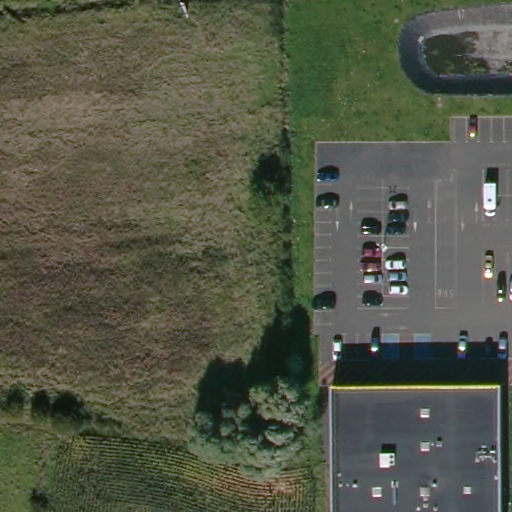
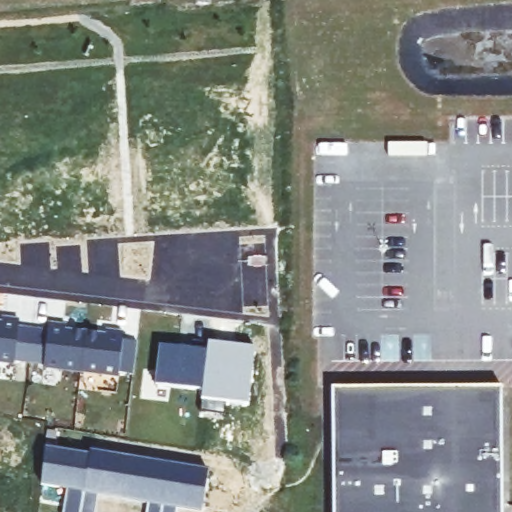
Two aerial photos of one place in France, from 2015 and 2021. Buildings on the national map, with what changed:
new [(1,318),(19,320),(18,327),(34,330),(29,362),(15,361),(14,365),(0,363),(0,322),(1,322),(1,318)]
new [(34,330),(48,331),(49,323),(66,326),(66,330),(86,332),(81,372),(44,367),(45,364),(29,362),(34,330)]
new [(161,346),(192,348),(194,342),(207,344),(203,390),(156,385),(161,346)]
unchanged [(495,392),(495,512),(325,512),(325,394),(495,392)]
new [(44,446),(88,453),(89,449),(128,455),(122,496),(97,492),(94,512),(61,512),(65,487),(83,488),(40,482),(44,446)]
new [(122,496),(128,455),(168,462),(208,468),(201,509),(175,505),(174,512),(146,512),(148,501),(122,496)]

